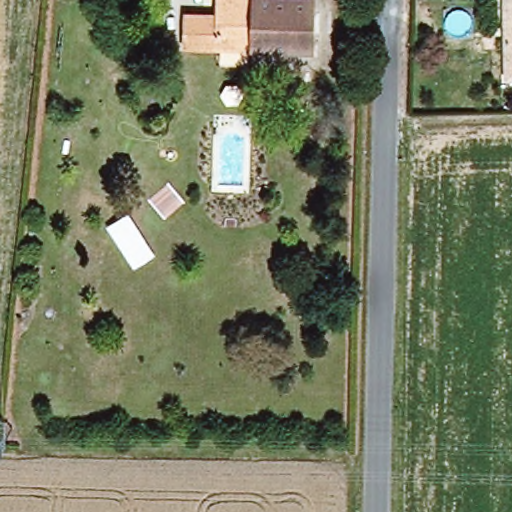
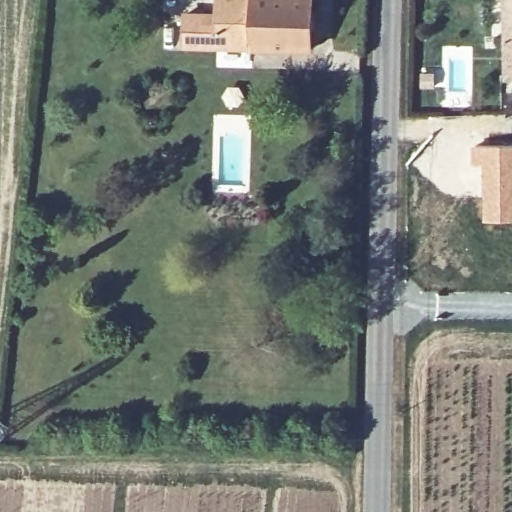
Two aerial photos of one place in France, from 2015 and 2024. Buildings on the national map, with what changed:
unchanged [(247,44),(183,42),(183,11),(200,11),(200,16),(217,16),(217,0),(249,0),(247,44)]
unchanged [(309,45),(283,45),(247,44),(249,0),(310,0),(309,45)]
unchanged [(501,0),(512,0),(512,78),(505,78),(501,0)]
unchanged [(282,80),(306,82),(304,99),(281,98),(282,80)]
new [(512,220),(484,220),(482,164),(472,164),(471,144),(512,143),(512,220)]

